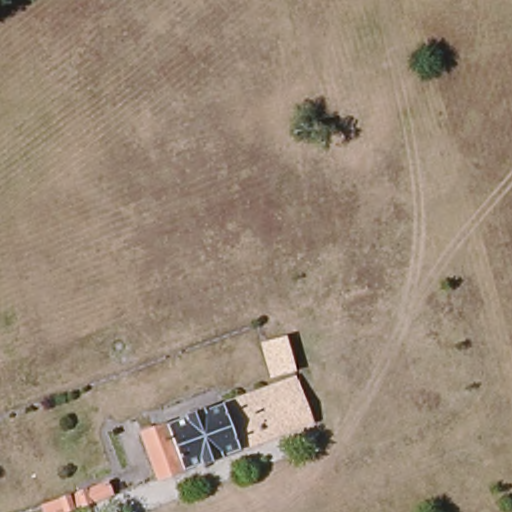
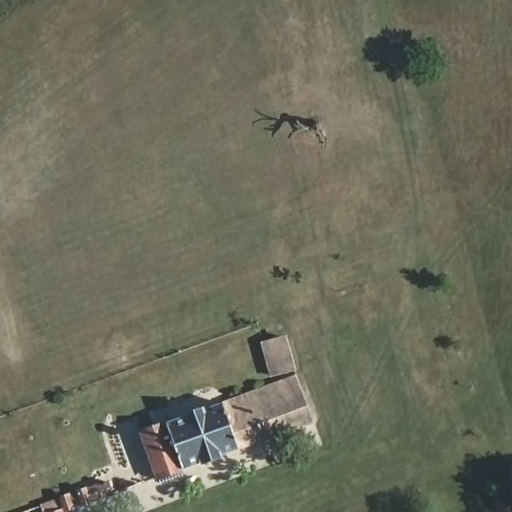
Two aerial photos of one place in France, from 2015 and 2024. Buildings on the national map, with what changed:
unchanged [(292,373),(269,378),(260,350),(284,342),(292,373)]
unchanged [(305,435),(152,478),(136,428),(200,409),(290,381),(305,435)]
unchanged [(60,498),(112,480),(116,496),(72,512),(37,512),(35,505),(60,498)]

